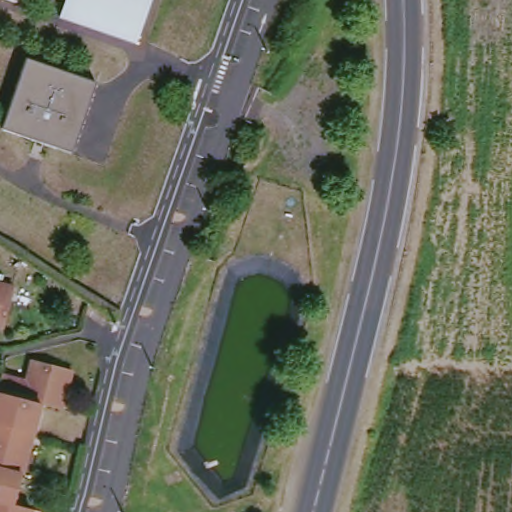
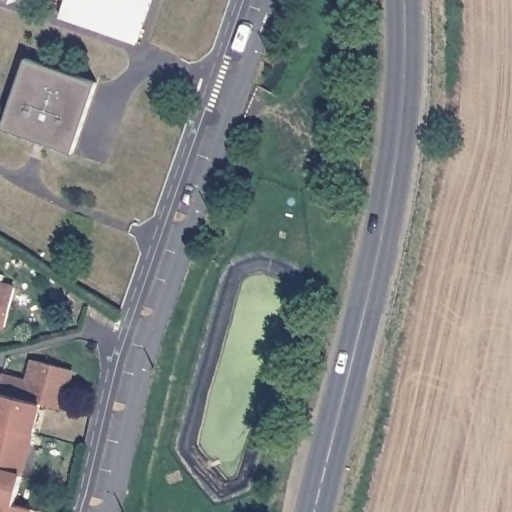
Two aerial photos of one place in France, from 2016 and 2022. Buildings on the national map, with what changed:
unchanged [(5,0),(18,0),(17,5),(5,0)]
unchanged [(56,17),(61,2),(55,0),(149,0),(132,45),(56,17)]
unchanged [(0,130),(0,124),(18,62),(87,86),(65,151),(0,130)]
unchanged [(2,327),(0,326),(0,287),(13,290),(2,327)]
unchanged [(0,377),(17,381),(24,360),(63,370),(53,408),(35,403),(0,394),(0,377)]
unchanged [(27,432),(0,424),(0,394),(35,403),(27,432)]
unchanged [(15,476),(0,471),(0,424),(27,432),(15,476)]
unchanged [(7,503),(0,502),(0,471),(15,476),(7,503)]
unchanged [(25,508),(23,512),(0,512),(0,502),(7,503),(25,508)]

